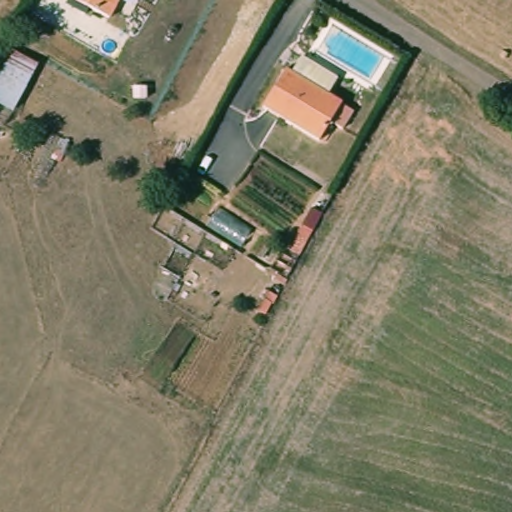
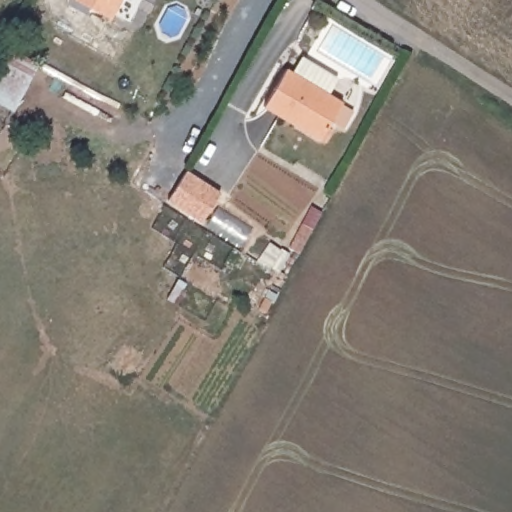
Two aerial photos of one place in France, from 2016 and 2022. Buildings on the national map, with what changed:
unchanged [(86,0),(117,0),(110,12),(86,0)]
unchanged [(2,40),(40,60),(15,110),(0,103),(0,44),(2,40)]
unchanged [(280,66),(341,98),(321,137),(260,105),(280,66)]
new [(179,172),(214,191),(197,222),(162,204),(179,172)]

